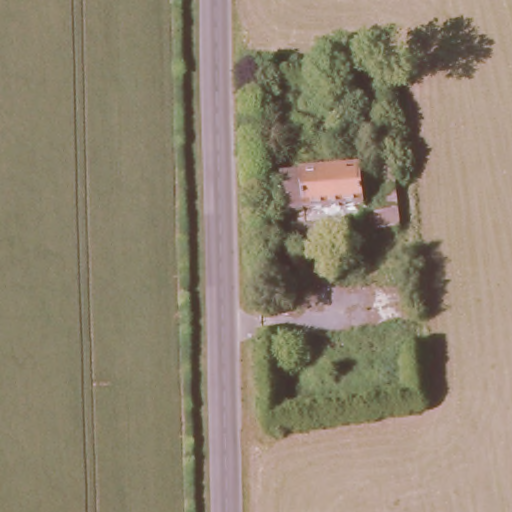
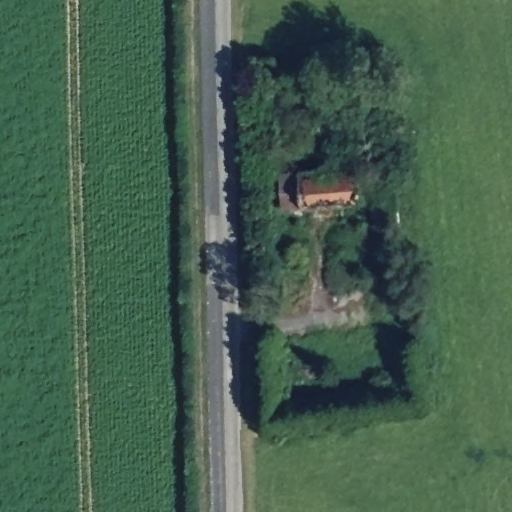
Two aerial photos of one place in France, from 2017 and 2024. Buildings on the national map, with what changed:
unchanged [(364,169),(366,216),(306,220),(284,216),(281,179),(298,176),(364,169)]

